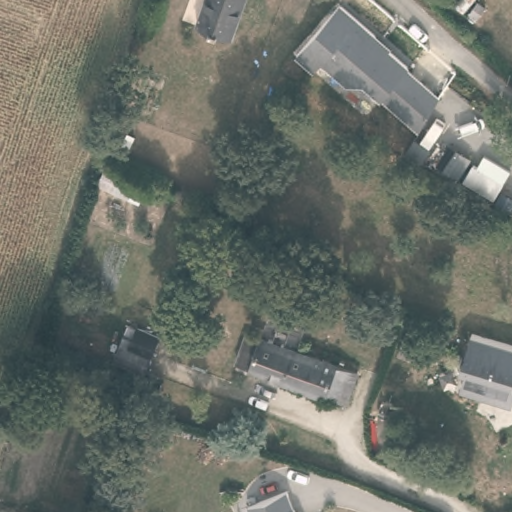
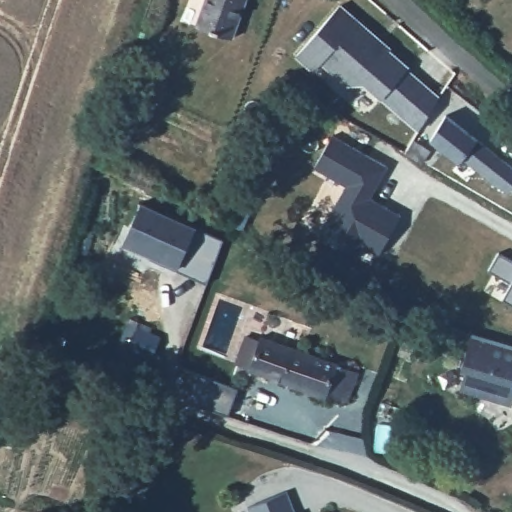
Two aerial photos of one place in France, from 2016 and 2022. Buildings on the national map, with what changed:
unchanged [(193,28),(204,0),(245,0),(231,41),(193,28)]
unchanged [(339,5),(442,97),(418,132),(365,86),(349,87),(324,64),(314,74),(293,56),(339,5)]
new [(346,185),(314,167),(333,135),(388,165),(371,197),(400,214),(378,252),(364,246),(357,257),(318,237),(346,185)]
demolished [(409,167),(426,174),(420,187),(403,179),(409,167)]
new [(143,202),(224,240),(208,283),(124,244),(143,202)]
new [(500,252),(512,258),(512,302),(503,297),(511,282),(489,270),(500,252)]
unchanged [(406,327),(438,337),(431,360),(415,354),(413,357),(398,352),(406,327)]
unchanged [(158,341),(150,361),(128,352),(135,330),(158,341)]
unchanged [(258,335),(338,359),(338,362),(359,369),(349,401),(317,392),(248,368),(258,335)]
unchanged [(512,346),(512,405),(458,391),(473,336),(512,346)]
unchanged [(249,510),(287,493),(295,512),(250,512),(249,510)]

